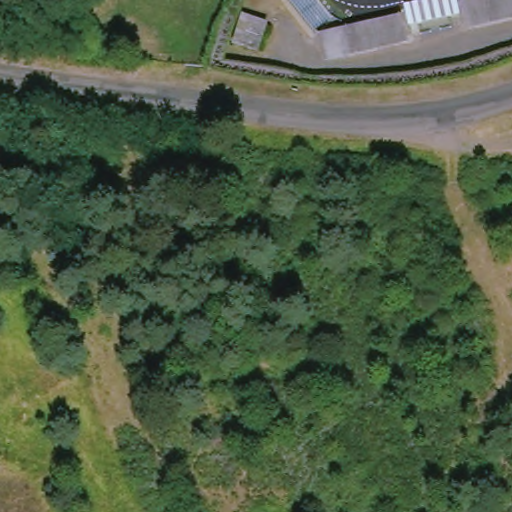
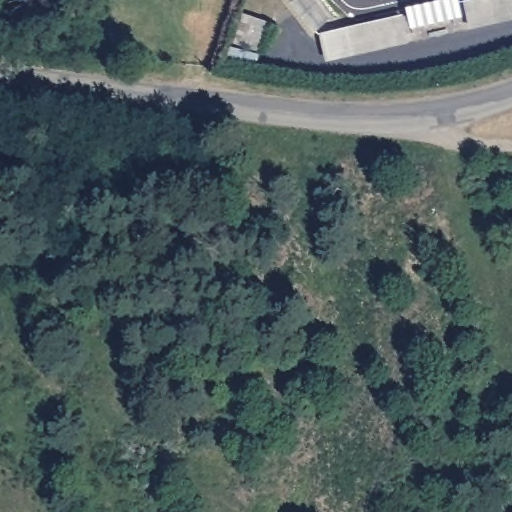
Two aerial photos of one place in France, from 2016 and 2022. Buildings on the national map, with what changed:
unchanged [(283,0),(293,0),(325,31),(404,6),(436,0),(512,0),(512,16),(467,21),(415,35),(325,56),(327,42),(283,0)]

